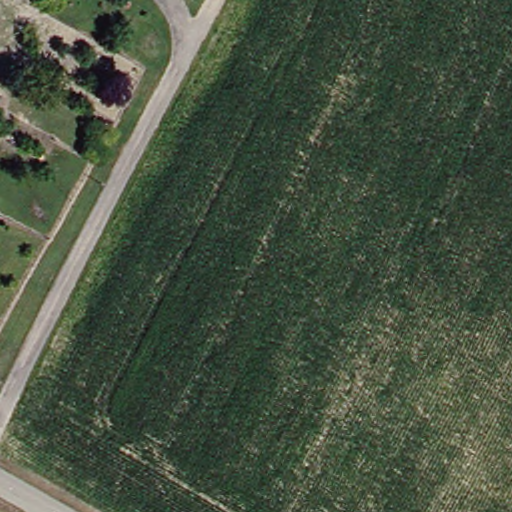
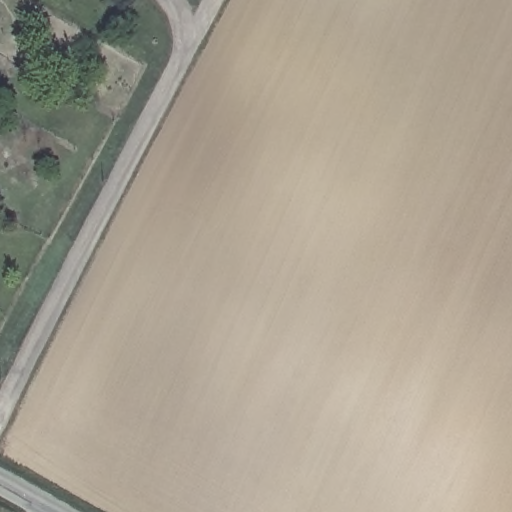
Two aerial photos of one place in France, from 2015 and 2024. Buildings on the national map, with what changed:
[]

